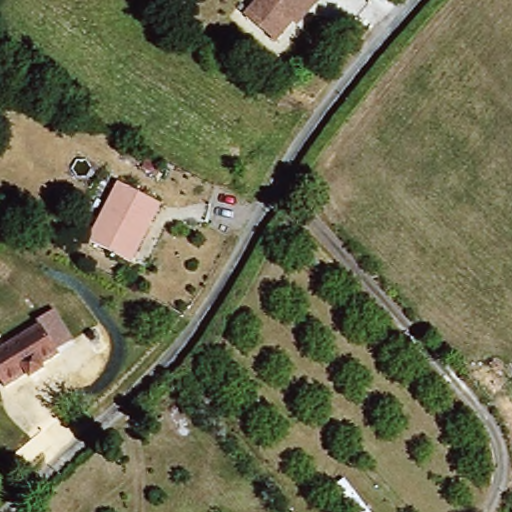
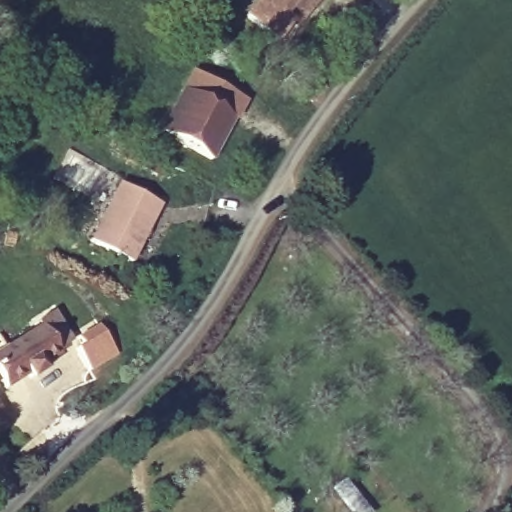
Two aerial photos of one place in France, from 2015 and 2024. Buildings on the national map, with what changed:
unchanged [(265,0),(324,0),(319,6),(315,1),(280,42),(251,15),(265,0)]
new [(198,71),(250,99),(240,119),(238,118),(216,160),(179,140),(165,134),(187,91),(198,71)]
unchanged [(160,201),(135,257),(98,240),(125,184),(160,201)]
unchanged [(77,342),(61,352),(66,362),(10,392),(0,375),(0,349),(60,310),(77,342)]

